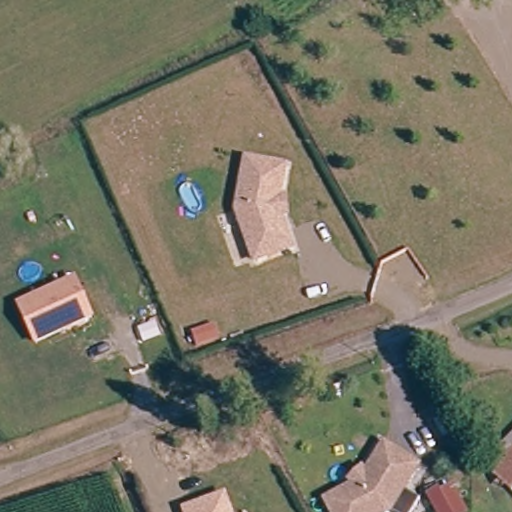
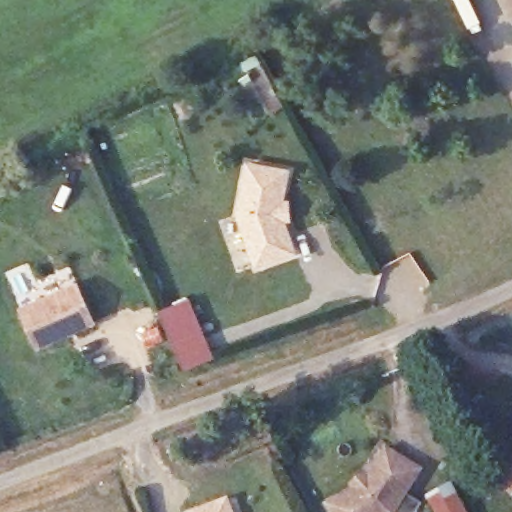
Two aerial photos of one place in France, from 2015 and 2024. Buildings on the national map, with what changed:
unchanged [(254,267),(233,217),(241,166),(280,171),(275,203),(281,203),(283,219),(277,220),(290,252),(254,267)]
unchanged [(37,352),(17,307),(78,281),(98,324),(37,352)]
new [(185,370),(162,313),(190,302),(213,359),(185,370)]
unchanged [(510,464),(503,458),(512,450),(512,497),(494,478),(510,464)]
unchanged [(338,512),(336,509),(372,490),(386,466),(394,453),(414,465),(427,473),(403,512),(338,512)]
unchanged [(436,512),(432,504),(454,491),(466,512),(436,512)]
unchanged [(233,512),(186,512),(227,497),(233,512)]

